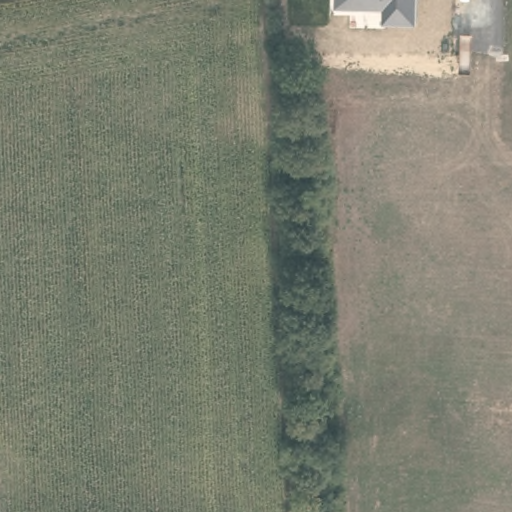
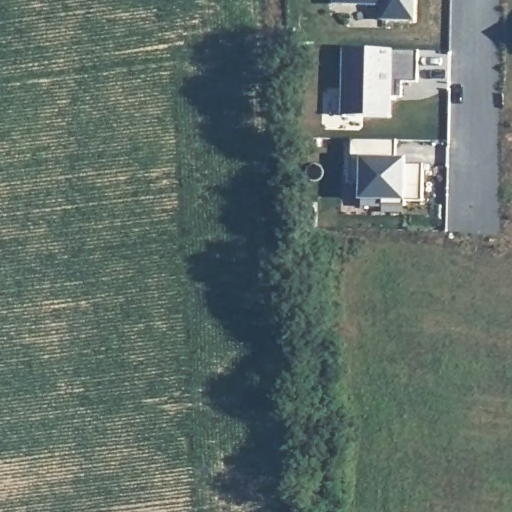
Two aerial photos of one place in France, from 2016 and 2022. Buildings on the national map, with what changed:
unchanged [(415,22),(384,22),(383,7),(333,7),(334,0),(417,0),(415,22)]
new [(346,49),(419,51),(419,82),(399,81),(399,96),(393,96),(392,119),(345,118),(346,49)]
new [(352,140),(398,141),(397,160),(406,160),(405,164),(424,165),(423,202),(361,201),(362,184),(350,184),(352,140)]

